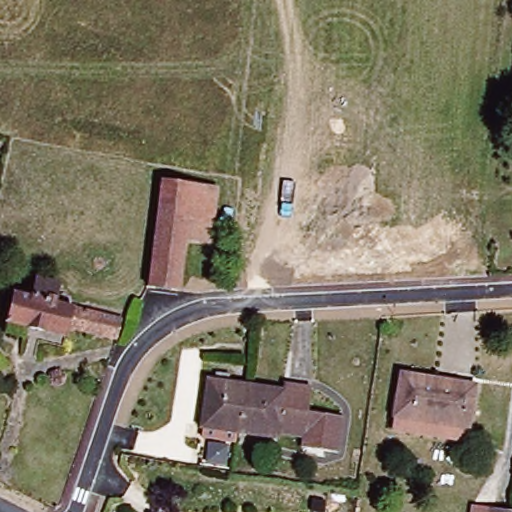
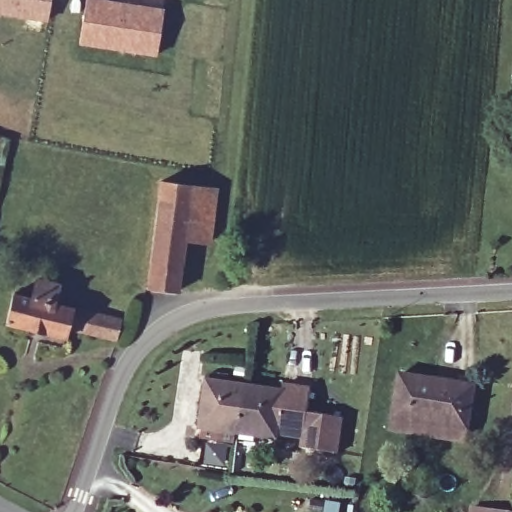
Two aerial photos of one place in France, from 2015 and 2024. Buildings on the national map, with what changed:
new [(47,22),(0,16),(0,0),(51,0),(47,22)]
new [(84,0),(117,0),(165,8),(156,56),(77,44),(84,0)]
unchanged [(162,189),(189,193),(213,197),(207,238),(184,235),(177,288),(146,284),(162,189)]
unchanged [(119,322),(114,343),(65,332),(63,341),(2,325),(10,290),(28,294),(32,278),(40,280),(56,284),(55,296),(53,305),(119,322)]
unchanged [(403,376),(473,385),(468,427),(447,424),(445,442),(396,434),(397,417),(403,376)]
unchanged [(257,385),(312,391),(309,416),(338,418),(334,453),(302,450),(303,438),(272,433),(271,438),(196,429),(200,388),(256,394),(257,385)]
unchanged [(510,509),(512,510),(512,512),(492,512),(493,507),(510,509)]

